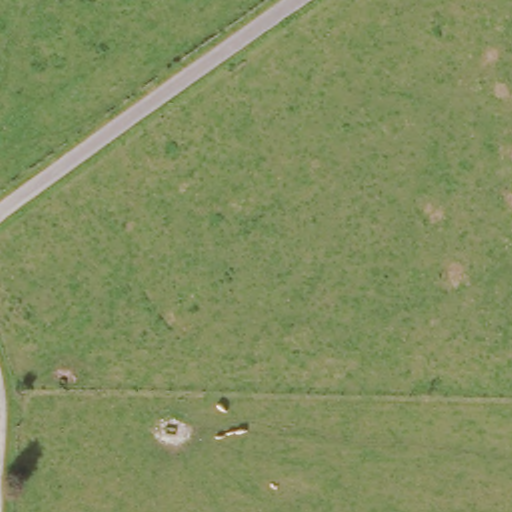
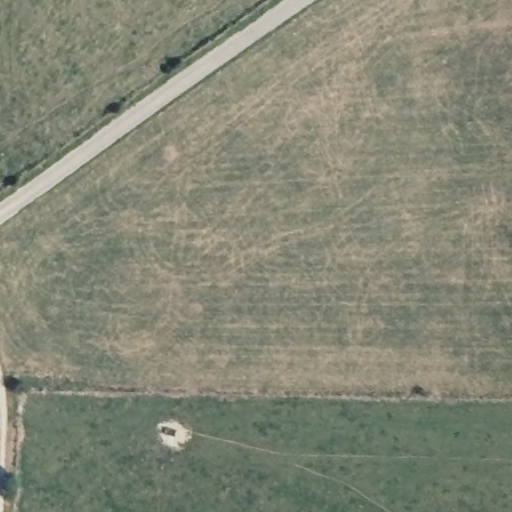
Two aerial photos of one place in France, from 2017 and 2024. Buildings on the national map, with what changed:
unchanged [(244,57),(251,60),(250,67),(242,65),(244,57)]

